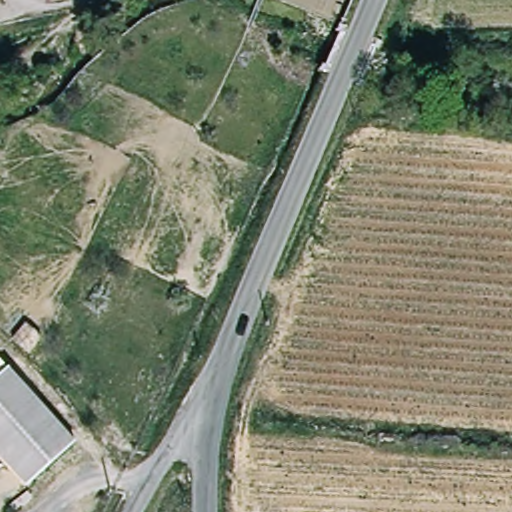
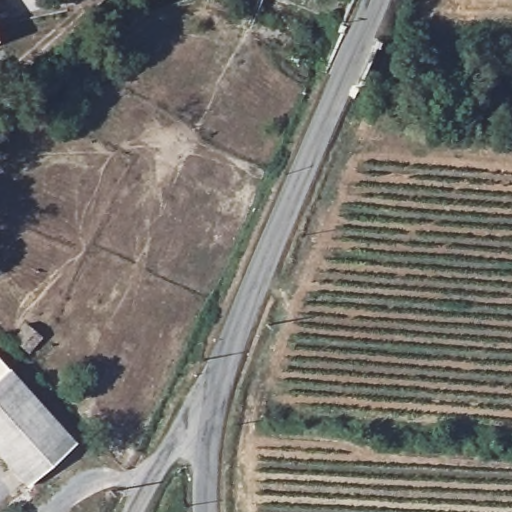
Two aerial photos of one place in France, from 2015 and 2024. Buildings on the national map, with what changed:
unchanged [(32,487),(0,450),(0,383),(17,368),(82,442),(32,487)]

